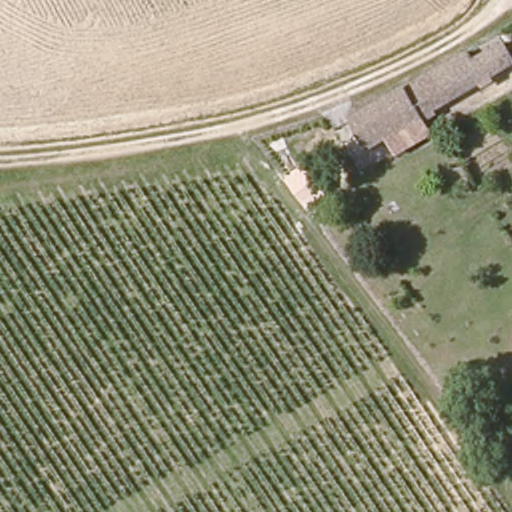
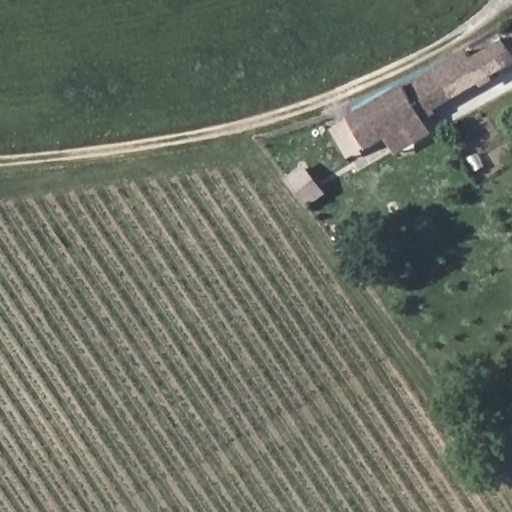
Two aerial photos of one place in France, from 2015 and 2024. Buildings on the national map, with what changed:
unchanged [(339,124),(457,62),(461,69),(511,42),(512,44),(512,67),(355,153),(339,124)]

